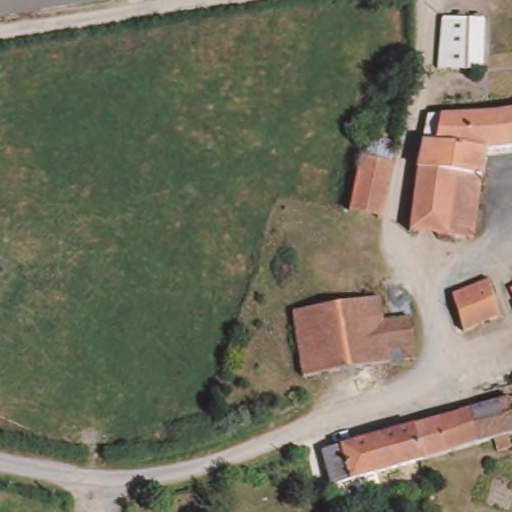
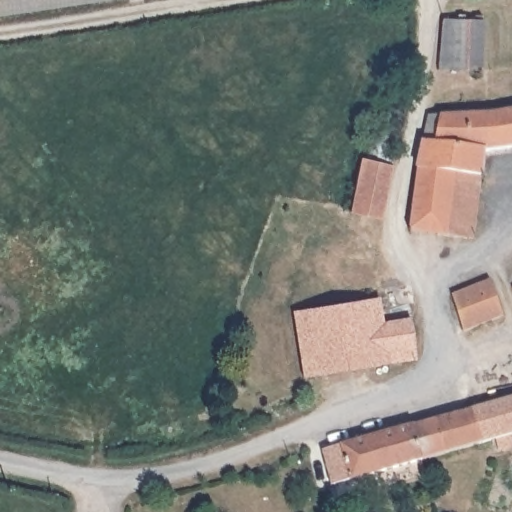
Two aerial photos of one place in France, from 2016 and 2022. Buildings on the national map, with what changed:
unchanged [(0,10),(0,0),(67,0),(0,10)]
unchanged [(447,21),(462,22),(463,16),(470,17),(470,22),(487,24),(483,70),(443,67),(447,21)]
unchanged [(512,147),(496,149),(491,109),(512,106),(512,147)]
unchanged [(410,226),(409,222),(413,193),(415,166),(427,134),(430,114),(491,109),(496,149),(484,150),(478,184),(487,185),(485,194),(476,193),(469,232),(432,228),(410,226)]
unchanged [(367,131),(395,136),(392,154),(381,207),(352,202),(363,149),(367,131)]
unchanged [(489,320),(467,330),(454,297),(490,282),(500,316),(489,320)]
unchanged [(373,351),(305,366),(291,304),(374,287),(380,312),(402,307),(411,346),(401,348),(373,351)]
unchanged [(475,428),(470,415),(469,412),(467,406),(501,397),(512,394),(512,433),(506,435),(509,445),(504,446),(497,448),(494,442),(493,441),(493,438),(486,442),(480,443),(475,429),(475,428)]
unchanged [(440,413),(467,406),(469,412),(470,415),(475,428),(475,429),(480,443),(448,454),(440,413)]
unchanged [(411,422),(440,413),(448,454),(422,461),(411,422)]
unchanged [(322,447),(411,422),(422,461),(334,487),(323,451),(322,447)]

